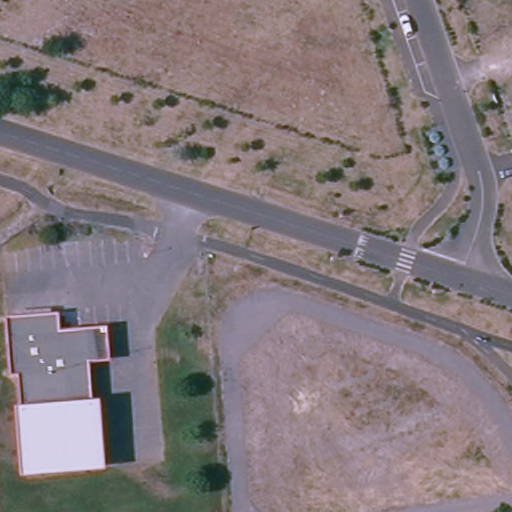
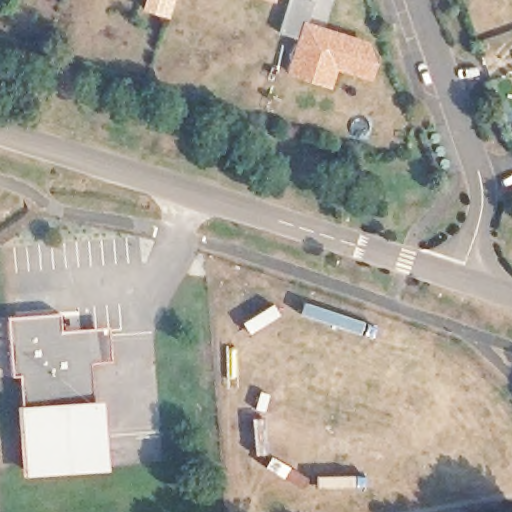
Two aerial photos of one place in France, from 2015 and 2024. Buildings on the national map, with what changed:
new [(151,10),(145,9),(148,0),(174,0),(169,16),(151,10)]
new [(288,0),(312,0),(315,1),(309,20),(369,40),(374,59),(367,79),(336,69),(329,88),(285,74),(295,39),(278,32),(288,0)]
unchanged [(60,314),(61,335),(100,333),(105,338),(106,354),(101,360),(90,361),(96,468),(24,472),(19,376),(11,376),(8,317),(60,314)]

